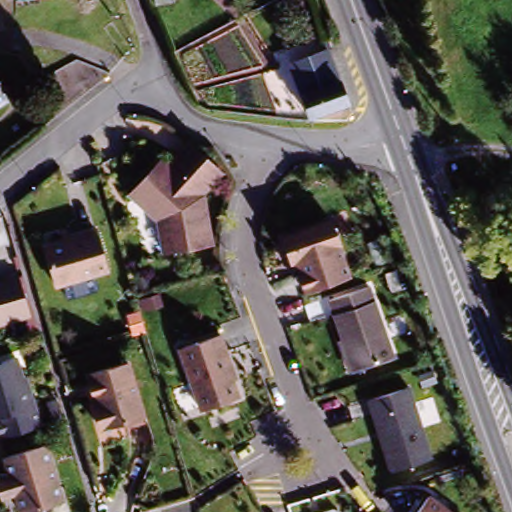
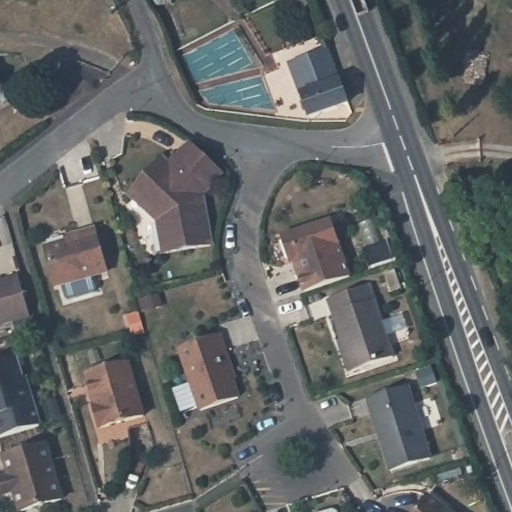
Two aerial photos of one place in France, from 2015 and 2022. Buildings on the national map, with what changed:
unchanged [(315,120),(307,98),(295,68),(332,53),(344,84),(352,106),(315,120)]
unchanged [(0,100),(0,91),(4,97),(0,100)]
unchanged [(155,159),(163,166),(181,143),(217,171),(200,195),(203,197),(211,248),(163,257),(158,221),(126,196),(155,159)]
unchanged [(303,292),(297,273),(302,271),(298,260),(286,264),(277,238),(327,220),(347,277),(303,292)]
unchanged [(81,234),(80,231),(98,224),(111,269),(58,285),(47,245),(81,234)]
unchanged [(35,318),(0,328),(0,286),(23,279),(35,318)]
unchanged [(325,301),(367,286),(391,356),(349,371),(325,301)]
unchanged [(220,332),(226,349),(224,350),(239,397),(201,410),(180,346),(220,332)]
unchanged [(0,359),(14,355),(22,377),(25,377),(40,426),(0,438),(0,359)]
unchanged [(130,362),(145,416),(97,430),(90,408),(94,406),(85,374),(130,362)]
unchanged [(410,386),(432,456),(392,469),(370,398),(410,386)]
unchanged [(0,477),(10,473),(3,453),(47,440),(63,495),(20,508),(14,489),(2,492),(0,486),(0,477)]
unchanged [(449,512),(414,512),(425,496),(449,512)]

